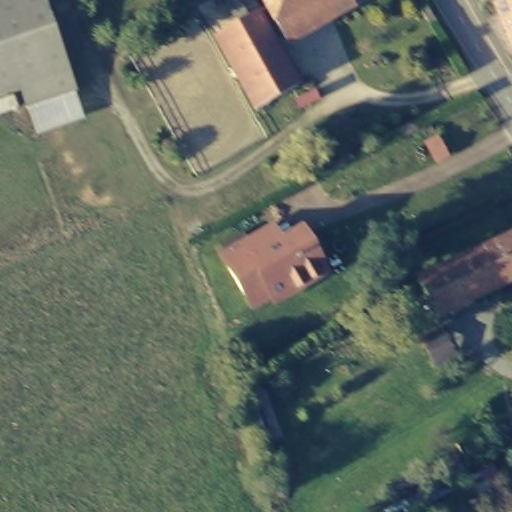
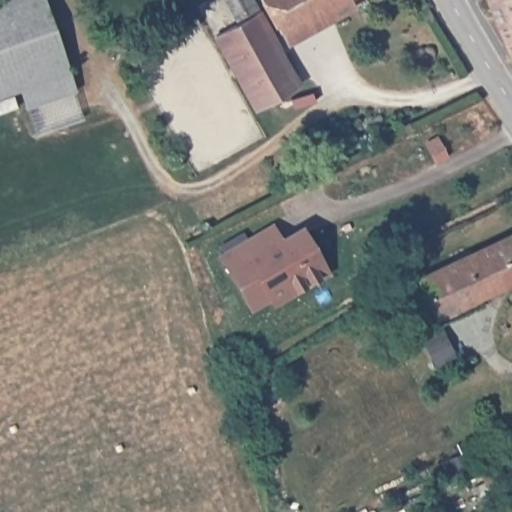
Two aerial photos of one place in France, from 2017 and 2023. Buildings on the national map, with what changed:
unchanged [(19,123),(11,100),(0,104),(0,1),(4,0),(35,0),(71,105),(19,123)]
unchanged [(276,25),(264,0),(331,0),(276,25)]
unchanged [(512,33),(499,0),(512,0),(512,33)]
unchanged [(211,25),(256,4),(288,79),(245,99),(233,75),(211,25)]
unchanged [(423,140),(430,154),(420,159),(413,145),(423,140)]
unchanged [(267,230),(276,245),(291,237),(302,255),(305,253),(317,276),(278,298),(276,296),(265,303),(262,300),(243,309),(215,259),(220,255),(215,246),(235,235),(240,244),(256,236),(267,230)]
unchanged [(421,273),(468,252),(512,234),(512,278),(437,310),(421,273)]

